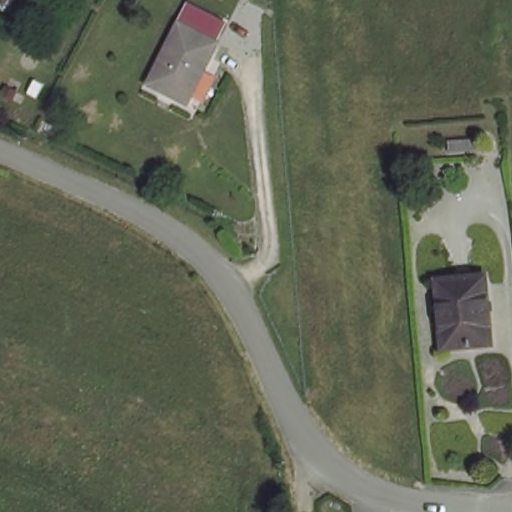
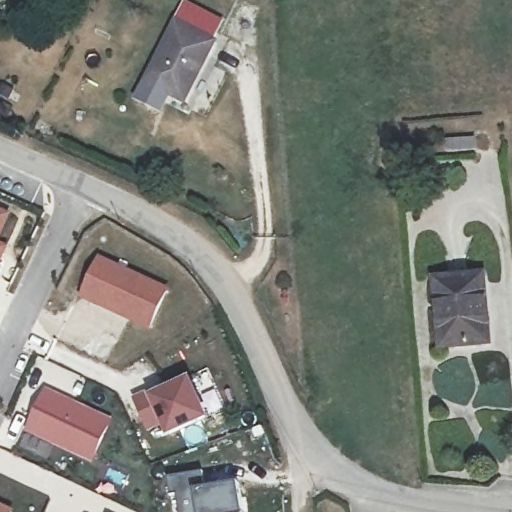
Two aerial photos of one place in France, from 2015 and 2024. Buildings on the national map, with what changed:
unchanged [(211,36),(214,38),(183,96),(146,77),(183,0),(220,18),(211,36)]
new [(0,210),(10,215),(0,237),(0,210)]
new [(0,263),(0,242),(7,246),(0,263)]
new [(150,330),(79,299),(98,256),(168,290),(150,330)]
unchanged [(487,275),(492,344),(468,345),(445,347),(440,280),(462,277),(487,275)]
new [(167,437),(162,427),(148,431),(133,398),(148,396),(190,377),(208,419),(167,437)]
new [(92,463),(25,432),(45,389),(111,420),(92,463)]
new [(162,501),(158,482),(194,476),(197,495),(230,488),(234,512),(171,512),(169,500),(162,501)]
new [(12,512),(0,512),(0,503),(13,510),(12,512)]

